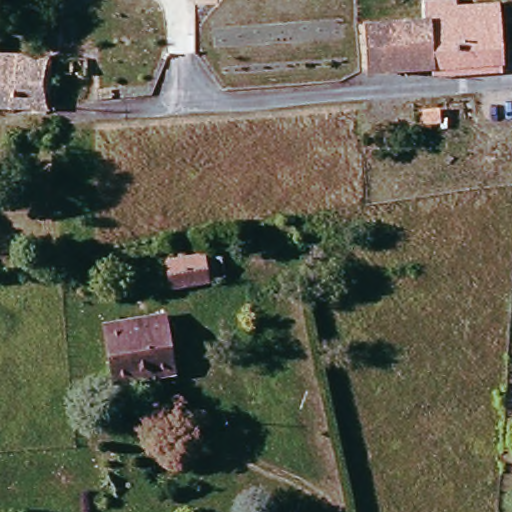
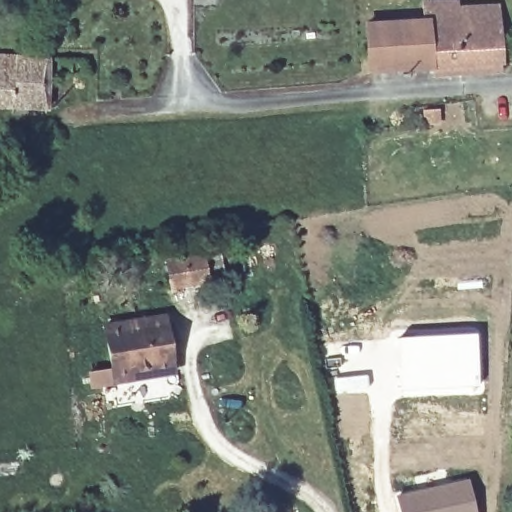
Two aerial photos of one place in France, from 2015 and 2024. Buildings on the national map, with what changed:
unchanged [(367,72),(364,27),(422,23),(421,3),(455,0),(457,22),(492,19),(495,64),(460,66),(461,75),(434,77),(434,68),(367,72)]
unchanged [(48,58),(46,109),(0,109),(0,57),(48,58)]
unchanged [(202,257),(206,281),(176,287),(172,263),(202,257)]
unchanged [(135,371),(137,379),(117,382),(107,327),(165,317),(173,364),(135,371)]
new [(478,331),(481,388),(398,395),(389,337),(478,331)]
new [(476,512),(399,512),(395,494),(469,477),(476,512)]

